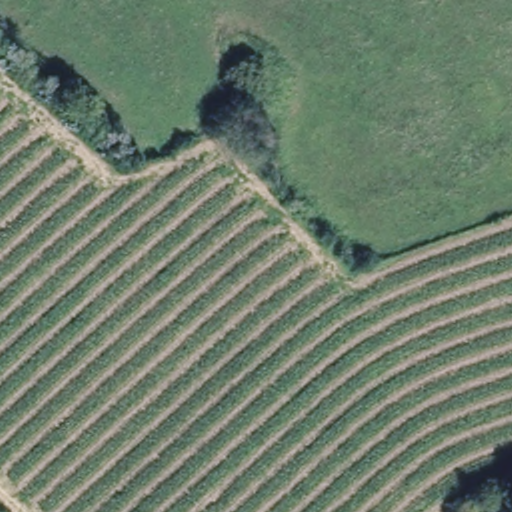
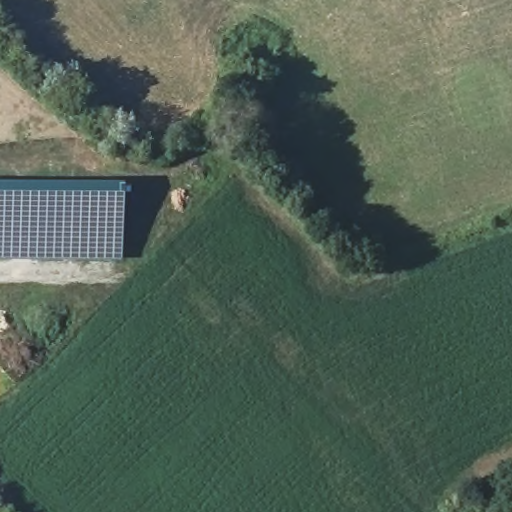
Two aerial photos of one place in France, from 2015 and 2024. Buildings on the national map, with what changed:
new [(121,193),(121,261),(23,261),(0,262),(0,191),(121,193)]

